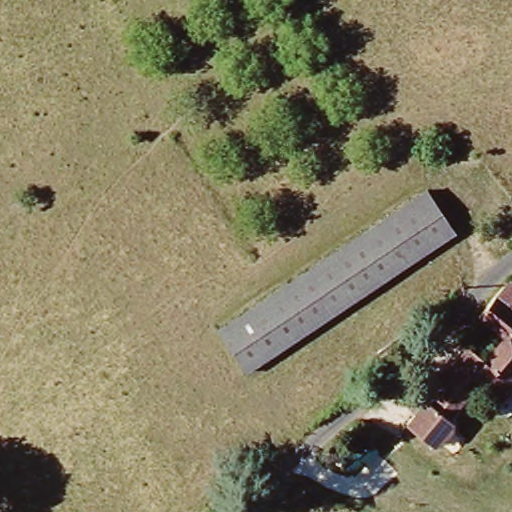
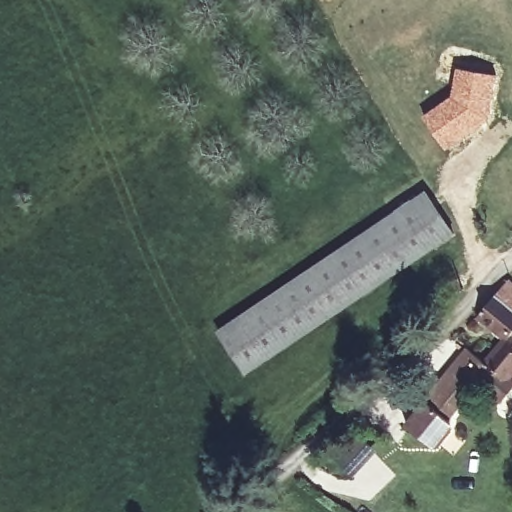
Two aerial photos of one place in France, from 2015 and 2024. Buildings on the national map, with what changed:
new [(450,95),(455,67),(497,74),(488,120),(445,150),(421,115),(450,95)]
unchanged [(423,191),(450,234),(242,370),(215,327),(423,191)]
unchanged [(503,334),(474,311),(510,276),(512,277),(512,326),(506,332),(503,334)]
unchanged [(495,374),(485,387),(476,380),(447,417),(420,396),(465,343),(485,357),(503,334),(506,332),(512,336),(512,365),(500,379),(495,374)]
unchanged [(401,422),(420,396),(447,417),(449,419),(430,445),(401,422)]

